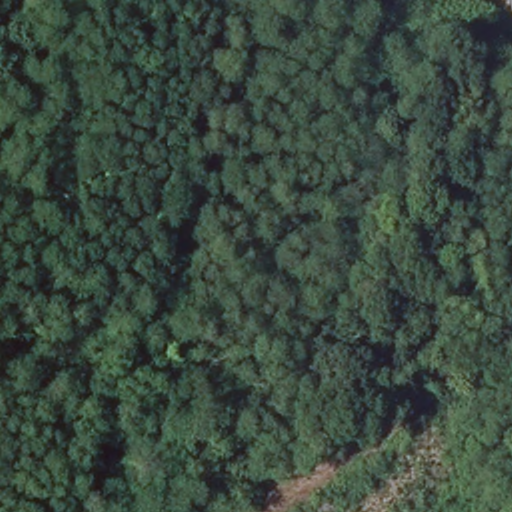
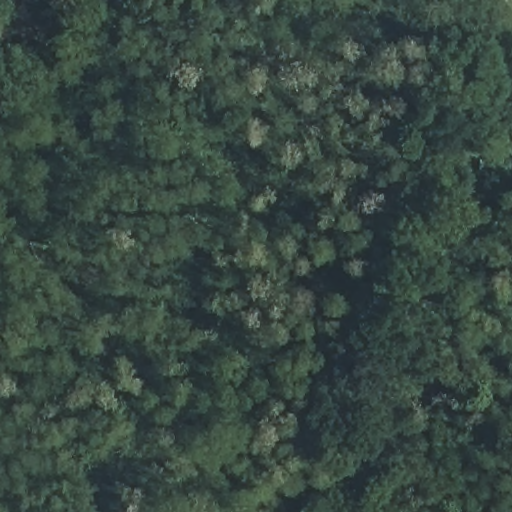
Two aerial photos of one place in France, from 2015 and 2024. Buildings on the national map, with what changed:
[]

